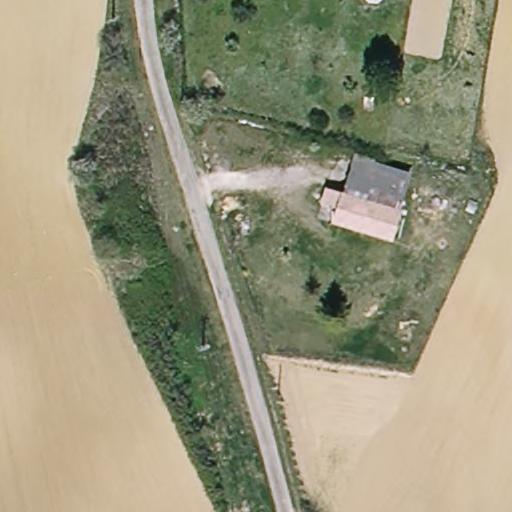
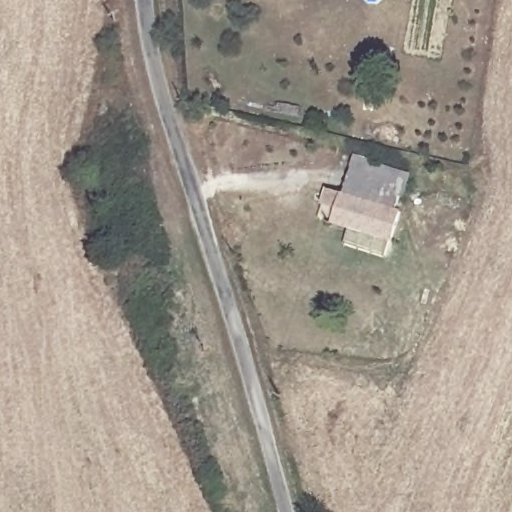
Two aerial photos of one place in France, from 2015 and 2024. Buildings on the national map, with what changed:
unchanged [(340,190),(350,157),(410,174),(401,207),(340,190)]
unchanged [(392,239),(333,223),(336,214),(318,207),(325,190),(335,194),(340,190),(401,207),(392,239)]

